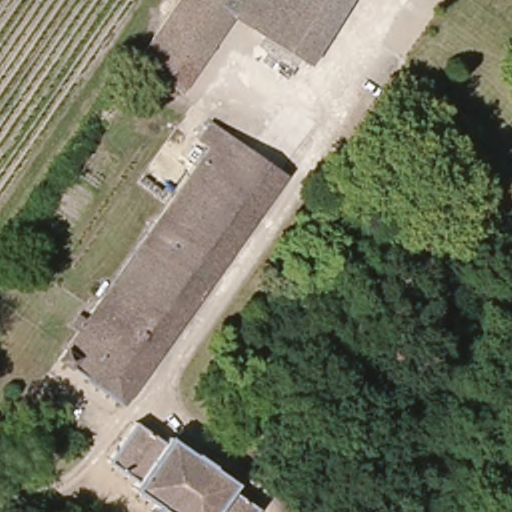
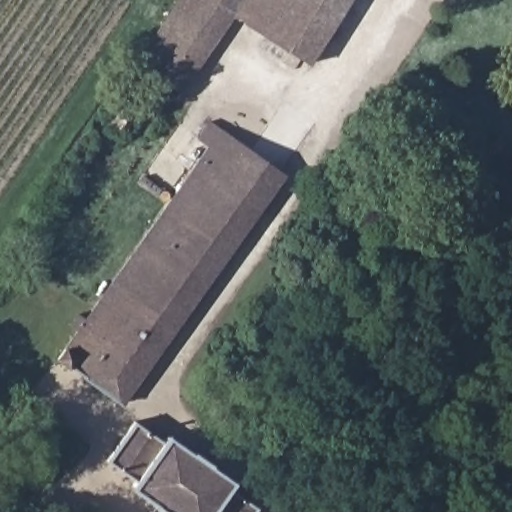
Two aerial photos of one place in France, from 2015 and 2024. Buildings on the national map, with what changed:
unchanged [(134,65),(176,0),(233,0),(225,11),(182,78),(174,91),(159,81),(134,65)]
unchanged [(233,0),(279,0),(282,2),(262,35),(225,11),(233,0)]
unchanged [(262,35),(282,2),(279,0),(342,0),(301,64),(262,35)]
unchanged [(58,352),(219,121),(280,166),(120,396),(58,352)]
unchanged [(165,432),(233,478),(230,484),(256,503),(250,512),(158,512),(148,506),(151,500),(130,486),(135,479),(105,459),(132,417),(162,437),(165,432)]

